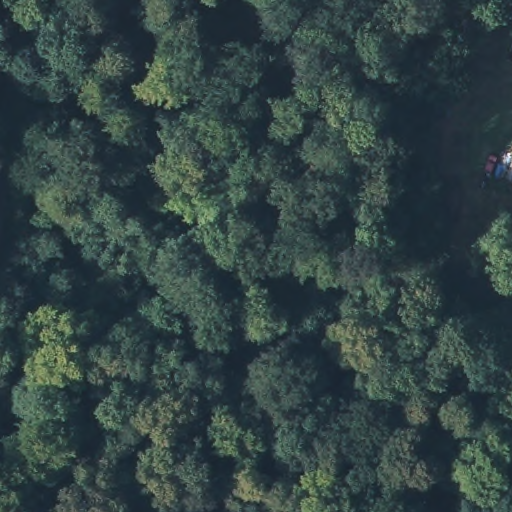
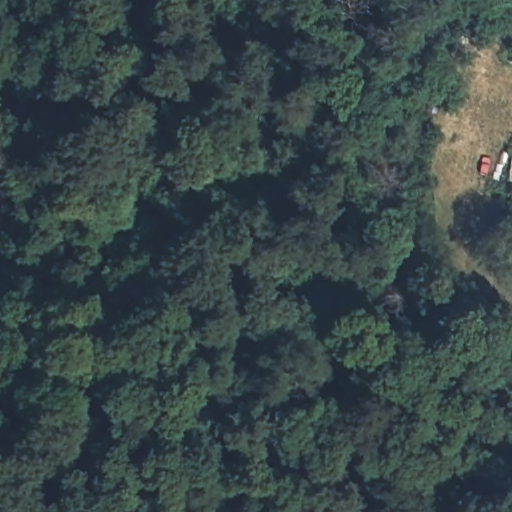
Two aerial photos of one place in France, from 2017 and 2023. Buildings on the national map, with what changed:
unchanged [(512,52),(512,75),(504,72),(512,52)]
unchanged [(15,308),(13,316),(6,312),(9,306),(15,308)]

